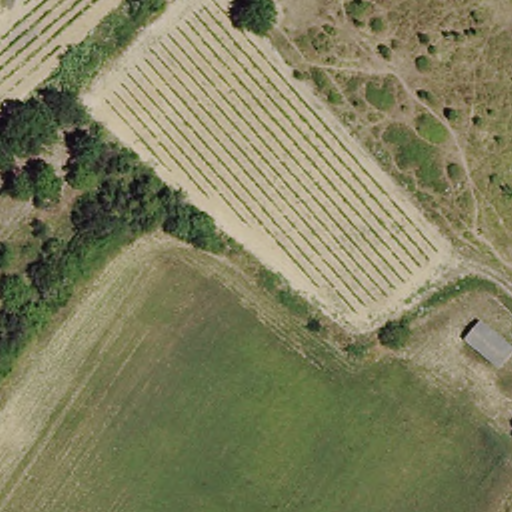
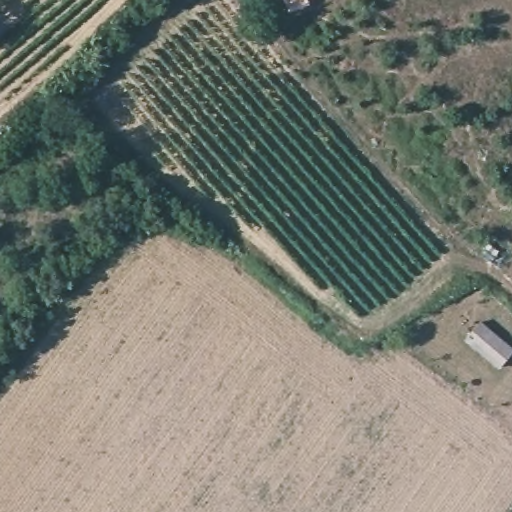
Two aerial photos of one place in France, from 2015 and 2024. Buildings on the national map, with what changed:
unchanged [(512,340),(512,353),(504,363),(471,336),(485,318),(512,340)]

